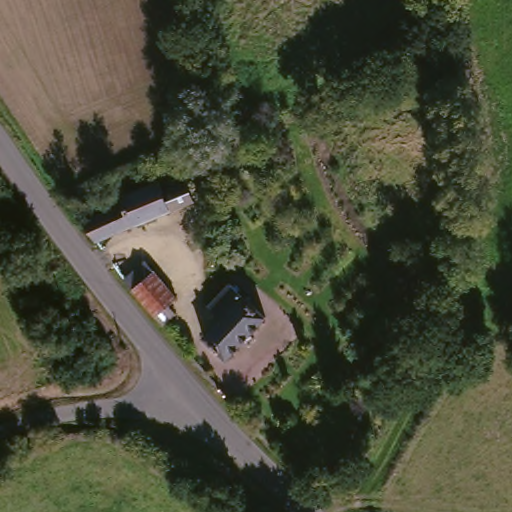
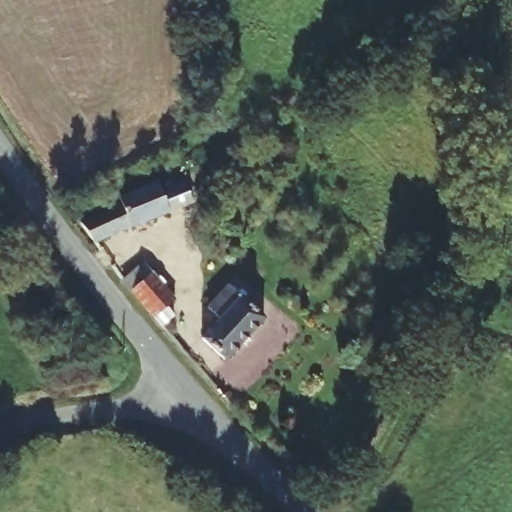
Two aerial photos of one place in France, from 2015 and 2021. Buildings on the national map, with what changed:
unchanged [(113,196),(152,183),(155,192),(178,184),(186,204),(85,240),(74,221),(116,206),(113,196)]
unchanged [(168,297),(158,305),(164,314),(153,324),(118,278),(141,261),(168,297)]
unchanged [(259,323),(219,357),(201,335),(219,320),(208,306),(229,287),(259,323)]

